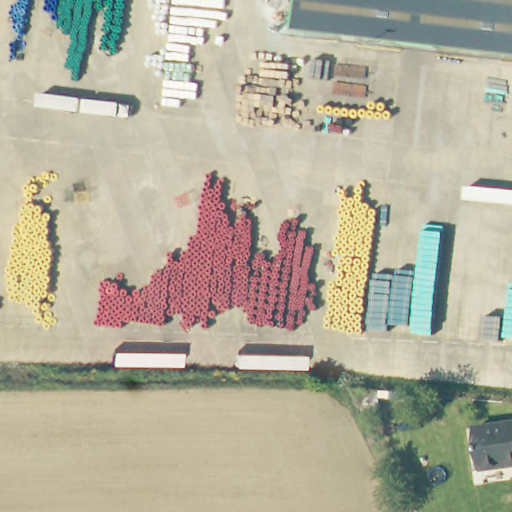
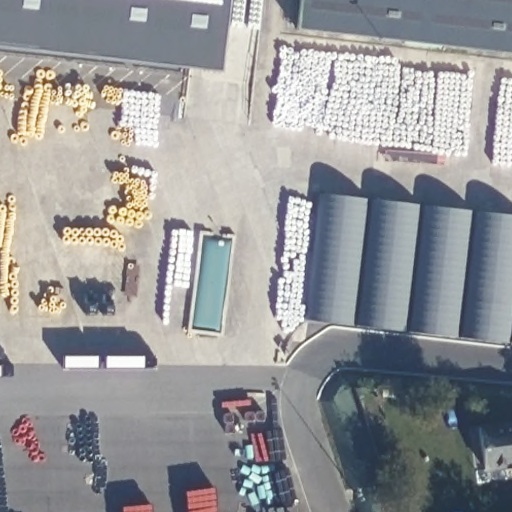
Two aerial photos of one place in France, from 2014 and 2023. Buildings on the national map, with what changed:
new [(216,70),(0,46),(0,0),(225,0),(216,70)]
unchanged [(512,50),(296,27),(299,0),(512,0),(512,50)]
new [(302,320),(313,194),(512,216),(512,294),(505,343),(302,320)]
unchanged [(512,421),(512,465),(483,469),(477,425),(512,421)]

